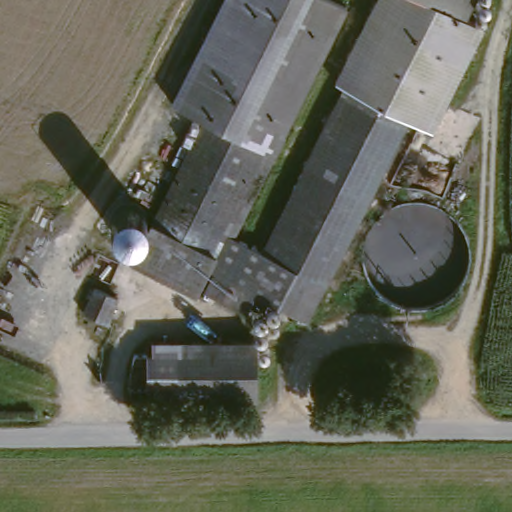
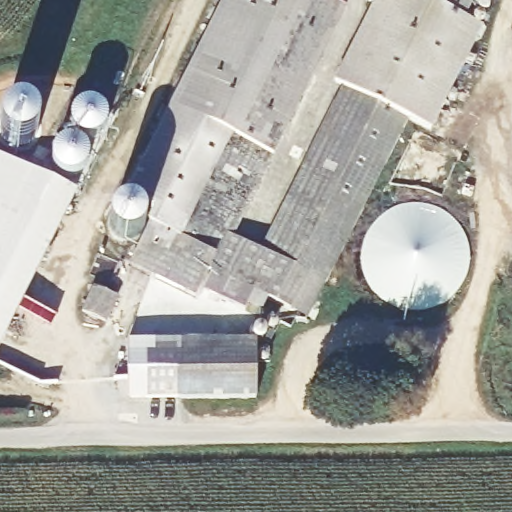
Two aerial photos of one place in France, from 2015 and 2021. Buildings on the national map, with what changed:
unchanged [(244,333),(221,322),(226,312),(204,300),(212,281),(205,277),(192,303),(175,295),(127,271),(171,181),(203,116),(170,101),(223,0),(343,0),(347,2),(281,140),(283,141),(273,161),(265,157),(224,240),(259,256),(379,14),(367,9),(372,0),(483,0),(476,26),(458,70),(427,129),(410,123),(325,288),(310,280),(290,319),(256,301),(249,313),(252,315),(244,333)]
new [(100,105),(105,110),(108,118),(107,124),(105,131),(100,136),(92,139),(86,139),(79,137),(77,141),(82,144),(88,150),(90,157),(86,170),(79,176),(70,177),(63,175),(56,169),(53,163),(53,154),(57,147),(62,143),(67,140),(72,140),(73,132),(72,127),(71,119),(73,112),(77,106),(83,103),(92,103),(100,105)]
new [(0,350),(0,153),(79,192),(0,350)]
new [(139,206),(142,209),(147,218),(147,222),(147,231),(142,233),(138,237),(132,240),(127,239),(119,237),(114,232),(112,217),(114,210),(121,205),(129,204),(136,205),(139,206)]
unchanged [(126,299),(114,328),(90,319),(102,291),(126,299)]
unchanged [(266,340),(267,398),(189,400),(187,342),(266,340)]
unchanged [(186,342),(187,342),(189,400),(157,401),(156,355),(162,355),(161,342),(186,342)]

